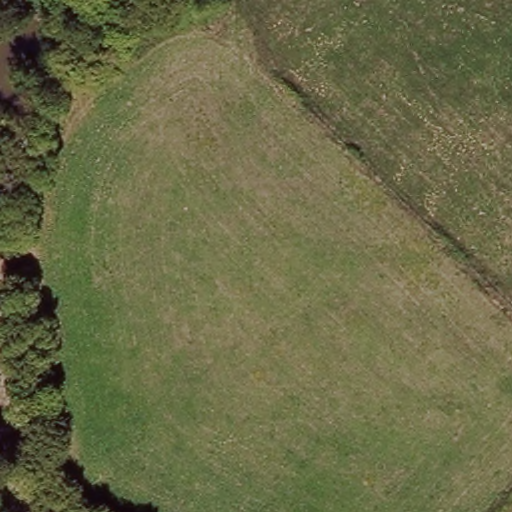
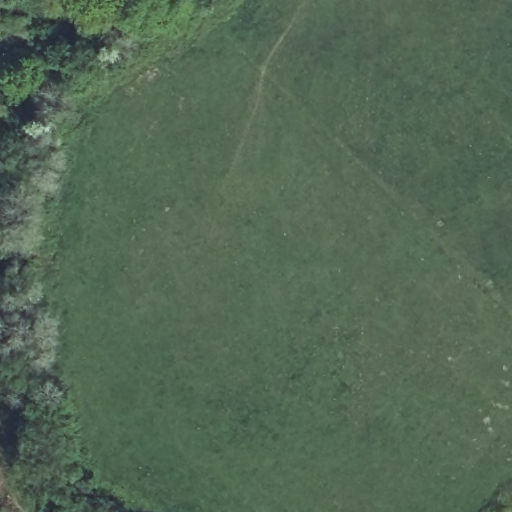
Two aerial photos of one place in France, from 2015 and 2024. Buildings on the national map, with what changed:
[]

